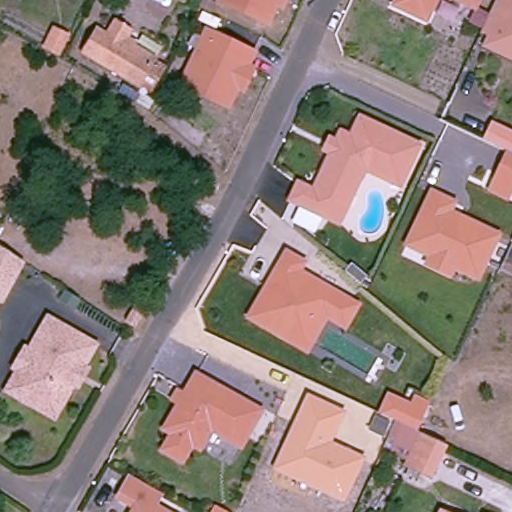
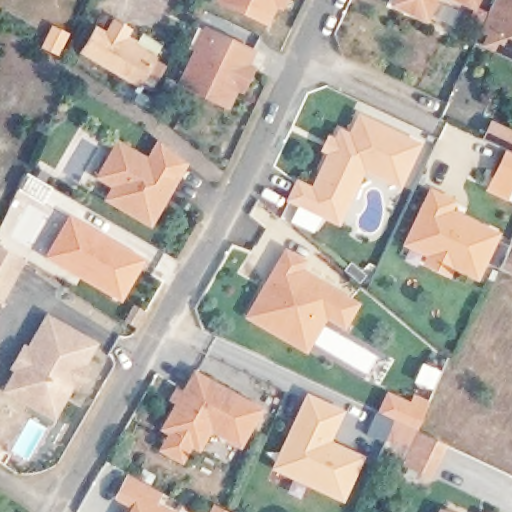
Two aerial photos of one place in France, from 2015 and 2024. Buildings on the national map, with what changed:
unchanged [(284,4),(279,2),(269,22),(269,23),(222,0),(287,0),(284,4)]
unchanged [(425,19),(393,4),(395,0),(434,0),(425,19)]
unchanged [(474,7),(468,4),(459,0),(477,0),(474,7)]
unchanged [(491,47),(498,32),(484,25),(496,0),(512,0),(512,57),(491,47)]
unchanged [(118,23),(131,32),(126,41),(151,59),(136,82),(81,46),(96,22),(111,32),(118,23)]
unchanged [(245,88),(240,86),(230,107),(183,84),(208,30),(255,52),(249,67),(254,70),(245,88)]
unchanged [(58,31),(73,38),(64,55),(49,48),(58,31)]
unchanged [(327,214),(313,208),(294,199),(292,198),(299,181),(307,185),(315,189),(325,166),(333,151),(326,148),(331,136),(338,139),(343,130),(352,135),(362,115),(373,121),(392,130),(421,143),(402,183),(366,166),(348,205),(340,220),(327,214)]
unchanged [(509,148),(482,136),(489,119),(512,132),(512,150),(509,148)]
new [(183,176),(153,227),(104,201),(111,187),(95,178),(117,138),(183,176)]
unchanged [(492,186),(498,174),(509,148),(512,150),(512,188),(509,194),(492,186)]
unchanged [(454,210),(501,232),(479,283),(454,272),(451,279),(421,266),(425,255),(403,245),(429,187),(457,201),(454,210)]
new [(148,259),(122,303),(43,258),(69,213),(148,259)]
unchanged [(9,292),(3,290),(0,294),(0,238),(29,258),(9,292)]
unchanged [(512,247),(512,268),(504,264),(512,247)]
unchanged [(306,352),(293,344),(248,317),(287,253),(304,263),(299,272),(318,283),(358,307),(344,328),(326,317),(325,319),(306,352)]
unchanged [(6,389),(29,348),(33,349),(50,318),(61,324),(96,344),(84,366),(93,369),(81,388),(74,384),(66,398),(58,415),(40,407),(6,389)]
unchanged [(262,411),(255,423),(244,446),(213,431),(203,451),(194,447),(186,464),(166,454),(174,438),(166,434),(180,407),(173,404),(178,395),(184,398),(195,377),(251,405),(262,411)]
unchanged [(346,411),(334,442),(364,456),(344,503),(273,469),(307,393),(346,411)]
unchanged [(428,401),(416,428),(393,417),(390,415),(379,410),(387,393),(401,399),(411,403),(414,396),(428,401)]
unchanged [(404,455),(386,447),(398,419),(416,428),(448,442),(435,468),(404,455)]
unchanged [(119,499),(130,477),(162,493),(161,493),(155,506),(166,512),(136,512),(138,508),(119,499)]
unchanged [(456,512),(449,512),(451,509),(456,512)]
unchanged [(488,512),(482,512),(484,509),(488,512)]

